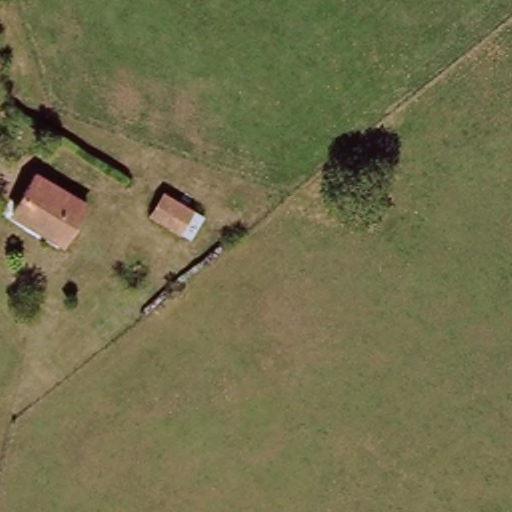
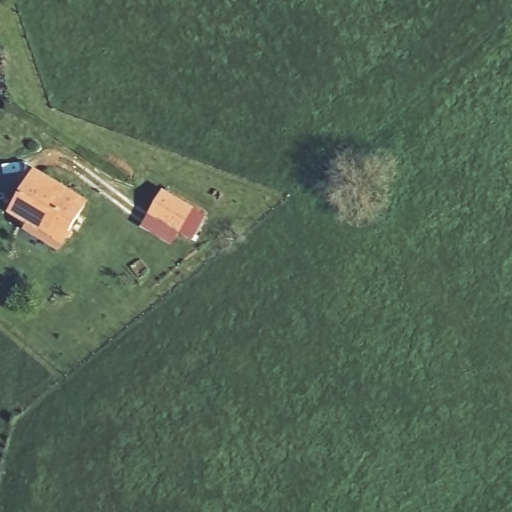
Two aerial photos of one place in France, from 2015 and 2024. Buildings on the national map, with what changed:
unchanged [(39,169),(83,198),(60,234),(15,205),(39,169)]
unchanged [(158,215),(170,195),(197,211),(185,230),(158,215)]

